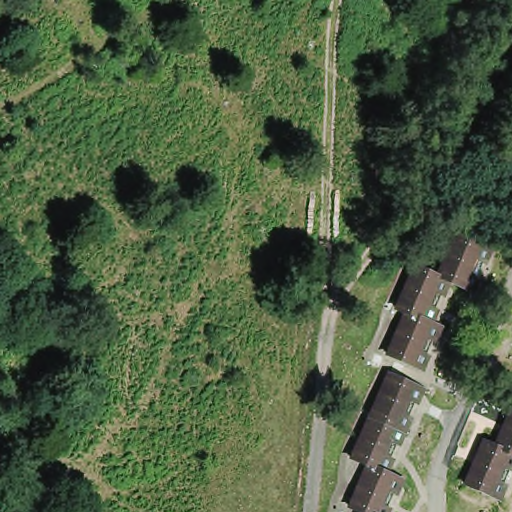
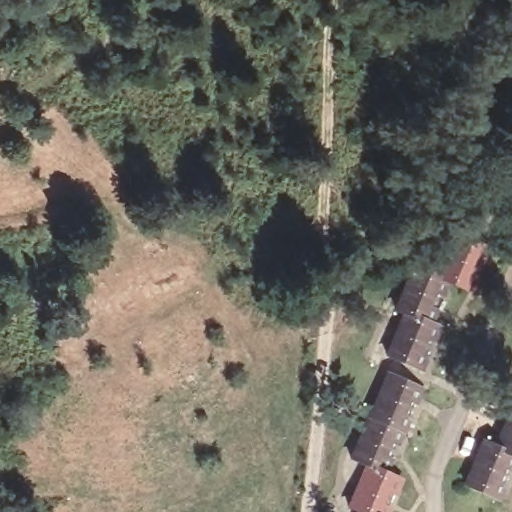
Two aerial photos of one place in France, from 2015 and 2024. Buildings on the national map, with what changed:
unchanged [(400,315),(388,310),(408,266),(434,273),(452,234),(480,244),(460,296),(434,295),(427,310),(437,311),(420,371),(382,354),(400,315)]
unchanged [(358,471),(345,463),(384,384),(410,396),(381,475),(402,481),(385,512),(348,512),(342,508),(358,471)]
unchanged [(501,470),(483,507),(454,494),(477,442),(488,448),(509,405),(512,406),(512,472),(501,470)]

